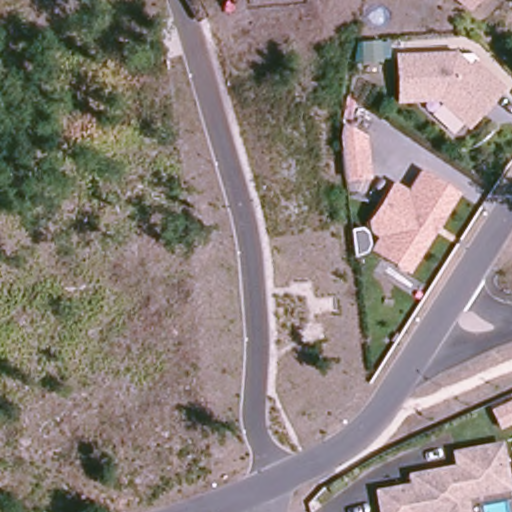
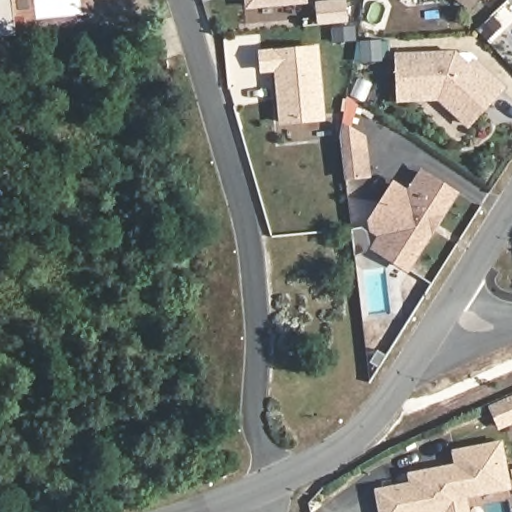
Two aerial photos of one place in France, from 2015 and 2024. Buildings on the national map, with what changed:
new [(16,18),(17,36),(0,38),(0,0),(14,0),(16,18)]
unchanged [(305,2),(251,6),(250,0),(304,0),(305,2)]
unchanged [(469,11),(453,0),(478,0),(469,11)]
new [(346,1),(347,21),(322,23),(321,3),(346,1)]
new [(279,125),(274,72),(260,73),(258,50),(319,45),(326,121),(279,125)]
unchanged [(454,50),(466,63),(473,56),(506,88),(467,127),(437,100),(397,103),(394,53),(454,50)]
unchanged [(367,135),(372,178),(345,181),(339,120),(367,135)]
unchanged [(407,188),(421,166),(461,192),(410,272),(373,249),(381,234),(366,225),(391,179),(407,188)]
unchanged [(500,432),(489,412),(512,402),(512,425),(500,432)]
unchanged [(468,500),(470,512),(378,512),(372,490),(405,483),(403,472),(452,464),(450,452),(502,440),(512,483),(512,490),(468,500)]

